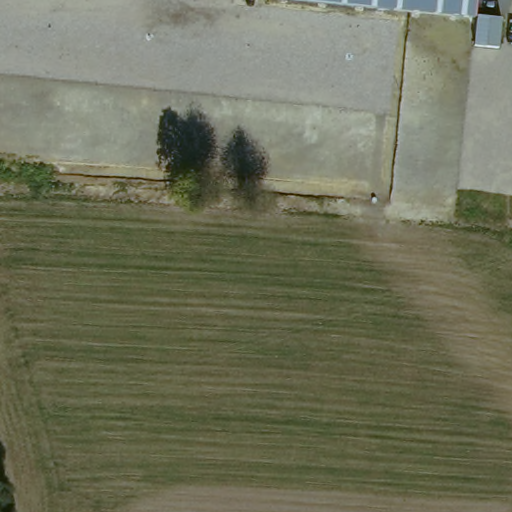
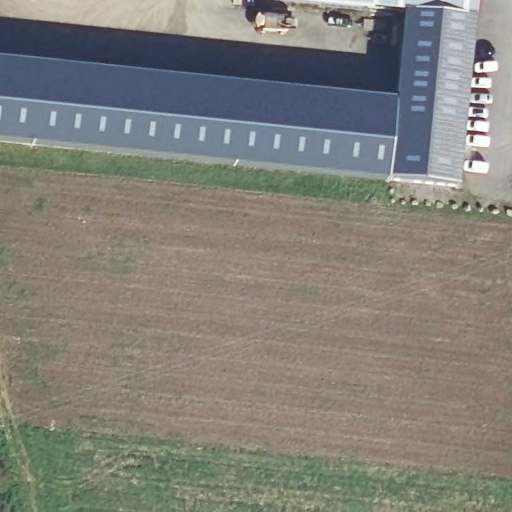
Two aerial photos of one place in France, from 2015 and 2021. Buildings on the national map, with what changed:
new [(474,20),(458,189),(0,144),(0,61),(394,100),(402,15),(263,0),(476,0),(474,20)]
demolished [(467,43),(378,35),(381,8),(282,0),(471,0),(467,43)]

